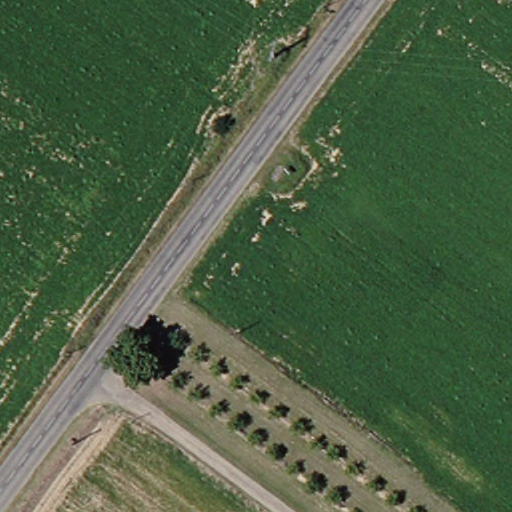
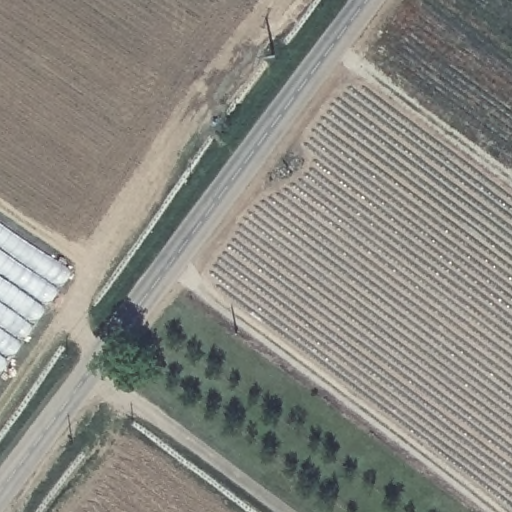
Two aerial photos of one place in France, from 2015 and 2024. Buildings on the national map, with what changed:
new [(0,372),(0,220),(72,269),(0,372)]

